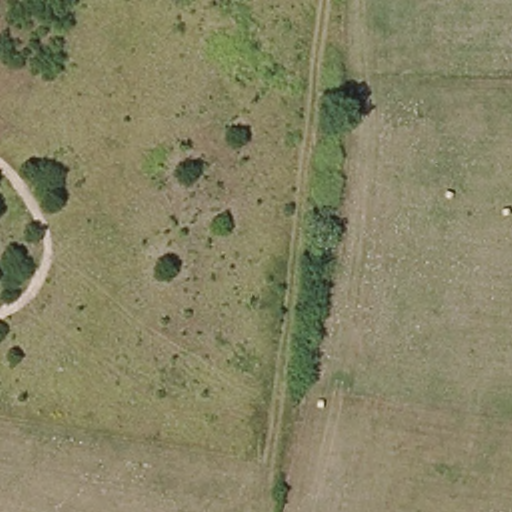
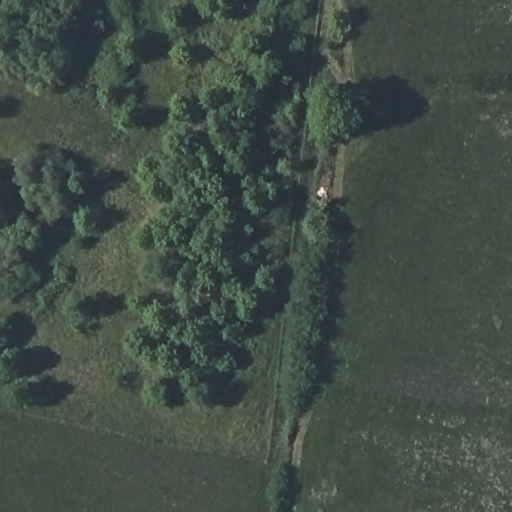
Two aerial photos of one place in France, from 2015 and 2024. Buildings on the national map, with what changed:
[]

